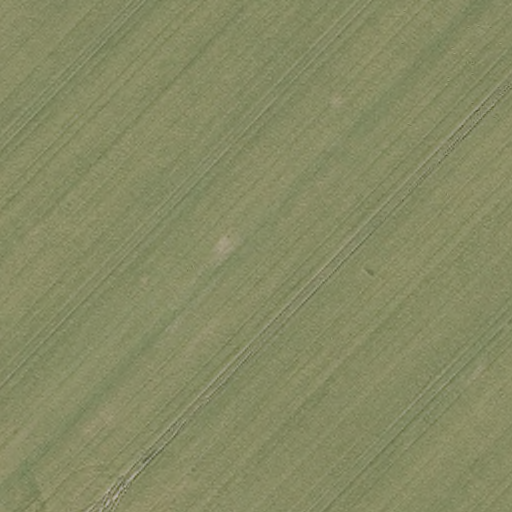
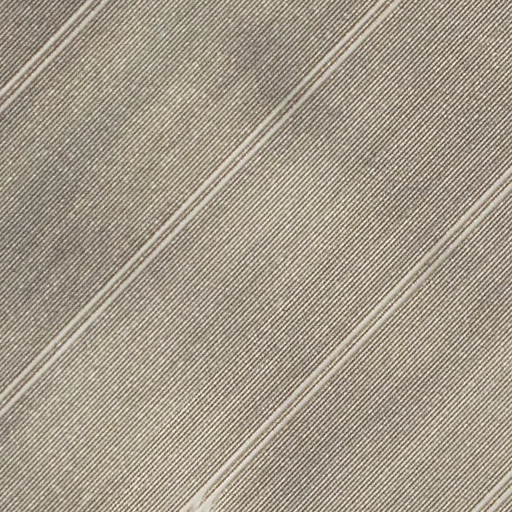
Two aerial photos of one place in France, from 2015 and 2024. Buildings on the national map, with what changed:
[]

